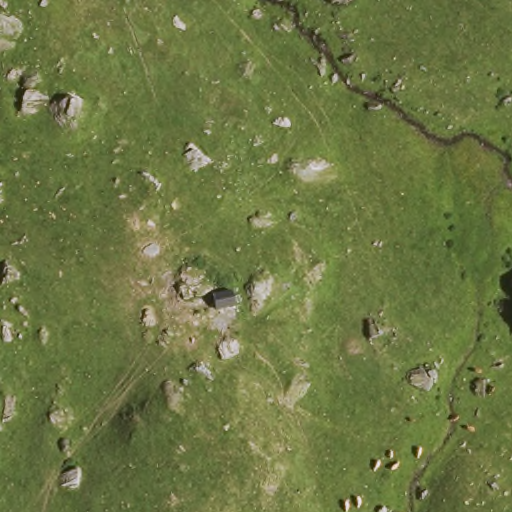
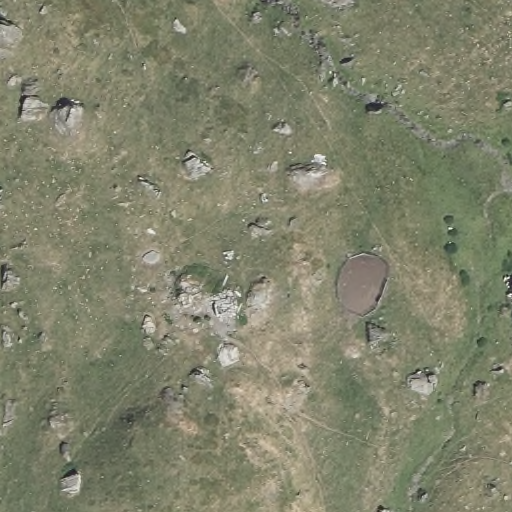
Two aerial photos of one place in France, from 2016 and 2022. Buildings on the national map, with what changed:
unchanged [(230,291),(234,311),(213,311),(211,295),(230,291)]

